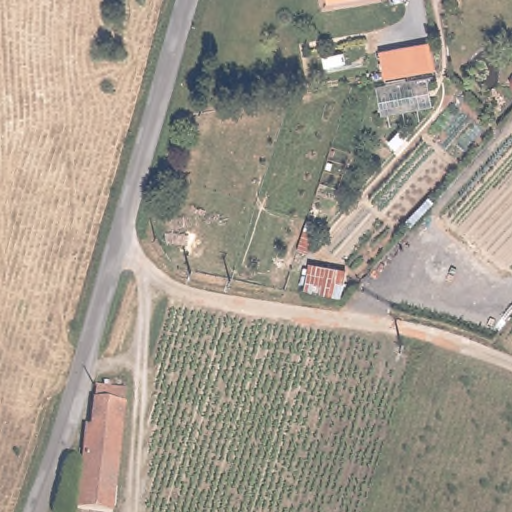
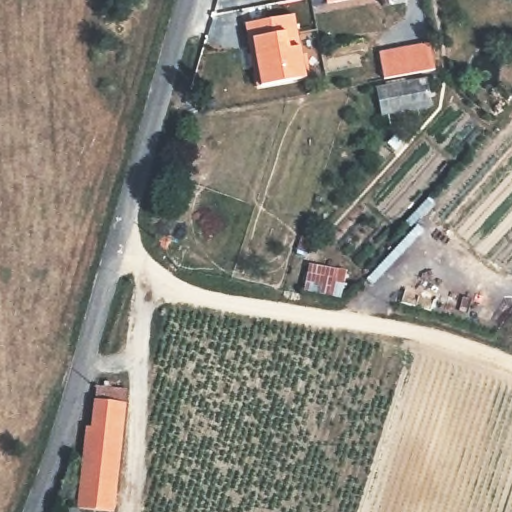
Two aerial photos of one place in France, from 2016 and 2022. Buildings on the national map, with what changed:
unchanged [(330,0),(366,0),(332,7),(330,0)]
new [(254,90),(242,26),(291,17),(298,58),(303,56),(308,80),(254,90)]
unchanged [(378,56),(429,48),(430,54),(434,76),(383,86),(378,56)]
unchanged [(86,430),(88,427),(93,427),(97,386),(128,389),(120,462),(84,458),(86,430)]
unchanged [(78,508),(84,458),(120,462),(115,512),(114,512),(78,508)]

